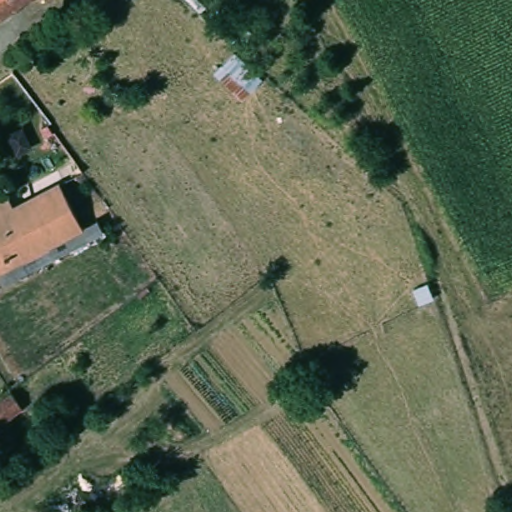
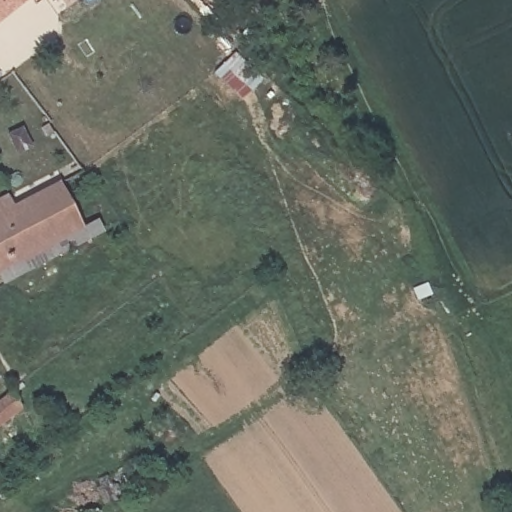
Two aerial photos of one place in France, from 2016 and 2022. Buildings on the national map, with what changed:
unchanged [(21,1),(0,18),(0,0),(23,0),(21,1)]
unchanged [(8,185),(14,196),(58,173),(81,217),(0,259),(0,189),(8,185)]
unchanged [(87,227),(0,271),(0,259),(81,217),(87,227)]
unchanged [(3,400),(4,400),(14,392),(15,391),(20,399),(25,406),(0,426),(0,403),(3,400)]

